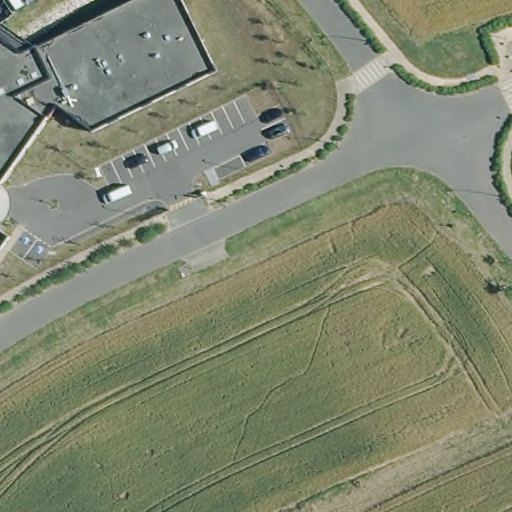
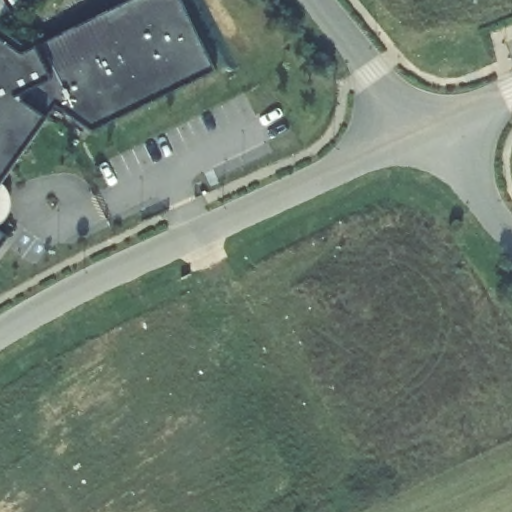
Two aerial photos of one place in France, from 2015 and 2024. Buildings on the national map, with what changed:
unchanged [(30,49),(36,46),(129,0),(183,0),(218,72),(91,133),(79,120),(58,106),(47,120),(2,183),(8,192),(11,207),(4,221),(0,225),(0,27),(30,49)]
unchanged [(8,237),(0,248),(0,231),(8,237)]

